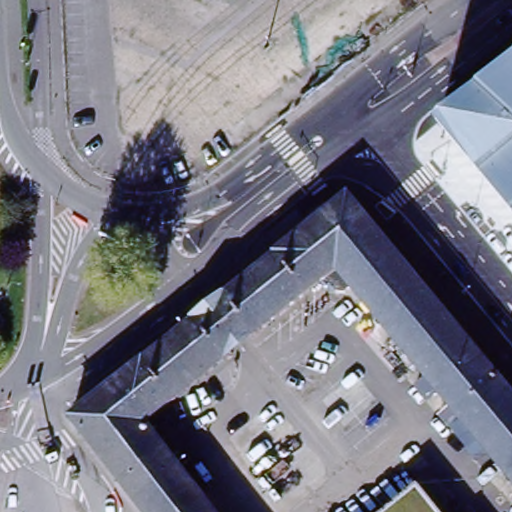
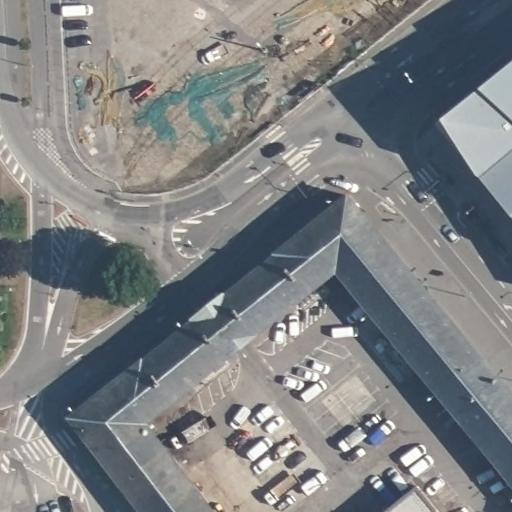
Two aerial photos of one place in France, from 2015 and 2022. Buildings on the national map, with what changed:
unchanged [(512,62),(512,209),(438,120),(512,62)]
unchanged [(126,371),(145,356),(147,358),(197,317),(196,314),(200,311),(202,312),(215,302),(213,300),(218,297),(220,299),(273,257),(271,253),(348,192),(512,389),(512,475),(474,429),(470,433),(467,435),(457,422),(460,421),(464,417),(439,387),(433,392),(428,396),(416,382),(420,379),(428,373),(353,282),(345,289),(337,289),(327,275),(148,419),(220,512),(147,512),(72,414),(126,371)]
unchanged [(418,484),(441,512),(382,512),(418,484)]

